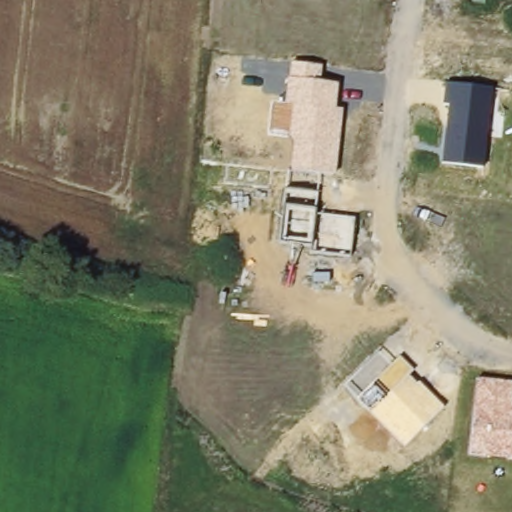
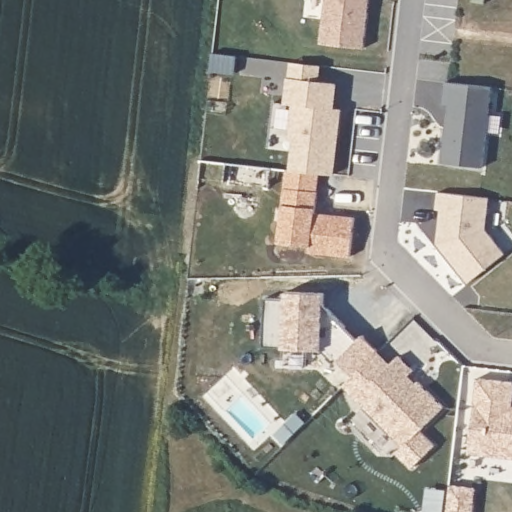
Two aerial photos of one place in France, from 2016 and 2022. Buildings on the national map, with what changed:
new [(324,0),(369,0),(363,50),(319,45),(324,0)]
unchanged [(322,64),(320,81),(340,83),(337,109),(342,109),(335,175),(320,173),(292,171),(294,141),(290,136),(292,103),(286,102),(290,62),(322,64)]
unchanged [(492,86),(483,168),(443,163),(449,105),(442,104),(445,81),(492,86)]
new [(292,169),(292,171),(320,173),(317,207),(316,213),(355,217),(351,256),(309,252),(310,246),(279,244),(283,203),(287,169),(292,169)]
new [(489,198),(486,230),(506,254),(469,283),(437,242),(441,210),(436,210),(438,192),(489,198)]
new [(285,297),(285,291),(326,293),(325,307),(359,339),(363,334),(379,351),(353,378),(337,363),(335,365),(322,351),(285,348),(264,347),(266,297),(285,297)]
unchanged [(415,369),(409,376),(416,382),(417,380),(443,406),(403,448),(344,387),(379,351),(392,364),(400,356),(415,369)]
unchanged [(512,458),(469,454),(476,377),(512,381),(512,458)]

